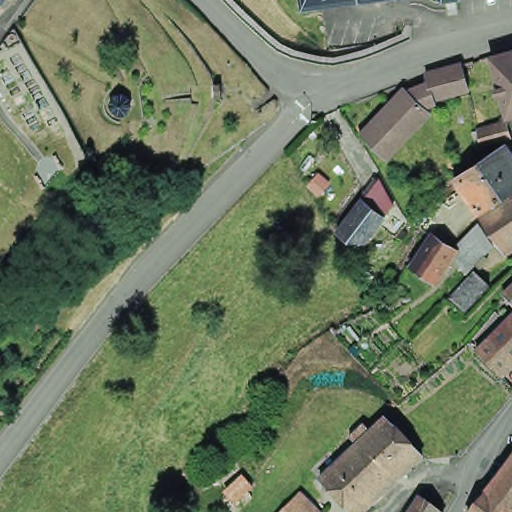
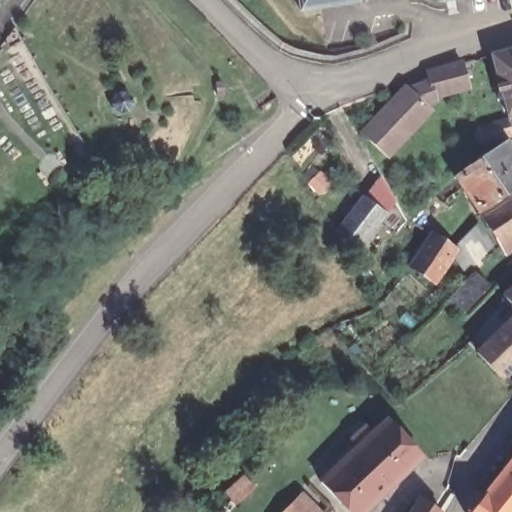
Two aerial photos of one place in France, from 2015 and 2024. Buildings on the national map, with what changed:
unchanged [(289,0),(328,0),(290,6),(289,0)]
unchanged [(507,117),(490,56),(512,50),(512,116),(507,117)]
unchanged [(358,127),(402,80),(406,85),(428,78),(425,69),(441,65),(462,59),(468,84),(447,90),(435,94),(436,99),(425,103),(430,108),(386,154),(358,127)]
unchanged [(132,106),(127,113),(118,115),(112,109),(110,101),(115,93),(123,91),(130,96),(132,106)]
unchanged [(510,135),(482,148),(476,135),(505,123),(510,135)]
unchanged [(477,213),(461,190),(456,181),(453,178),(500,148),(507,143),(512,150),(512,190),(477,213)]
unchanged [(334,232),(356,200),(370,185),(387,201),(380,217),(358,248),(334,232)]
unchanged [(505,255),(487,229),(487,228),(477,213),(512,190),(512,250),(505,255)]
unchanged [(441,274),(435,284),(409,267),(431,235),(453,251),(470,231),(477,223),(493,246),(486,253),(480,259),(465,274),(451,255),(440,272),(441,274)]
unchanged [(465,312),(450,299),(475,274),(488,287),(465,312)]
unchanged [(510,295),(512,292),(512,297),(510,295)]
unchanged [(506,374),(481,349),(487,342),(492,337),(483,327),(504,302),(512,310),(512,369),(506,374)]
unchanged [(366,512),(359,512),(325,478),(351,454),(346,449),(351,444),(356,449),(362,443),(356,434),(368,422),(375,430),(391,415),(428,452),(366,512)]
unchanged [(512,457),(512,512),(469,512),(512,457)]
unchanged [(440,512),(404,512),(420,488),(443,504),(444,506),(440,512)]
unchanged [(301,489),(325,512),(277,512),(301,489)]

